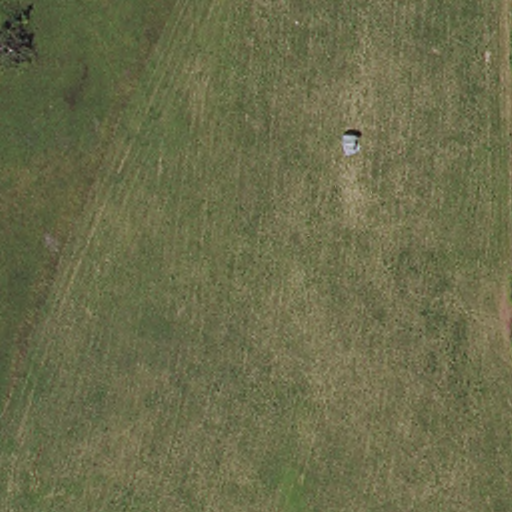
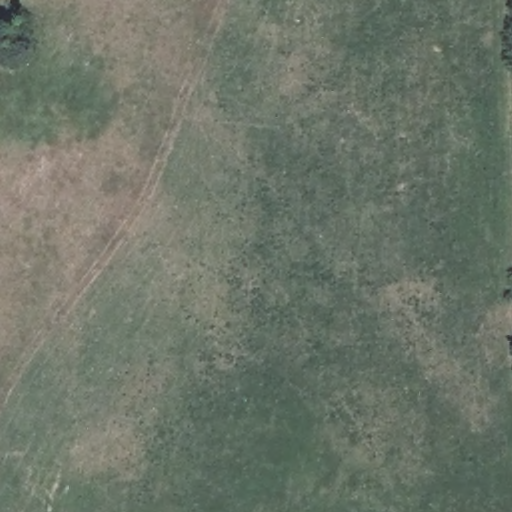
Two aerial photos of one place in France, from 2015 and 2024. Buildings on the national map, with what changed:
[]

